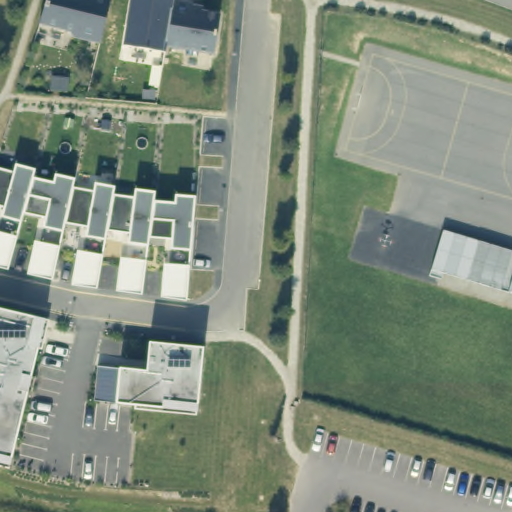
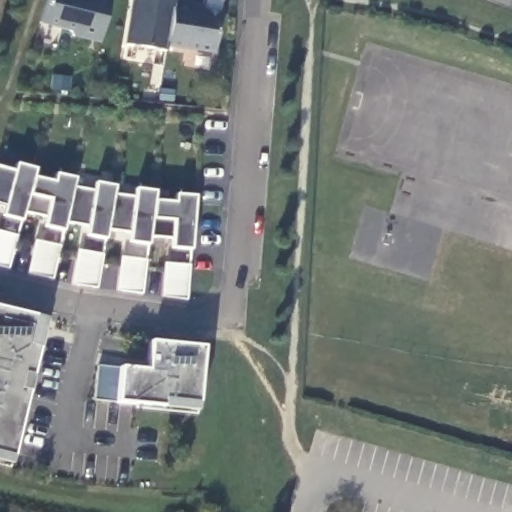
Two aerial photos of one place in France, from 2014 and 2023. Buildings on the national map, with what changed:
unchanged [(73,36),(69,30),(39,23),(47,0),(111,0),(100,42),(73,36)]
unchanged [(191,9),(220,14),(214,53),(166,45),(174,0),(192,2),(191,9)]
unchanged [(0,168),(14,172),(15,164),(36,169),(34,177),(54,182),(56,174),(74,178),(71,188),(94,192),(95,183),(114,187),(113,194),(135,198),(136,189),(155,191),(154,200),(175,202),(176,195),(194,196),(190,249),(172,248),(173,237),(149,236),(148,244),(129,242),(130,232),(107,229),(105,239),(87,236),(89,225),(65,222),(64,231),(44,226),(47,216),(24,211),(21,220),(2,216),(4,207),(0,206),(0,168)]
demolished [(507,291),(397,256),(409,218),(512,251),(512,275),(507,291)]
unchanged [(7,269),(0,268),(0,231),(16,235),(7,269)]
unchanged [(34,240),(59,246),(53,279),(28,274),(34,240)]
unchanged [(78,250),(103,254),(97,288),(71,285),(78,250)]
unchanged [(122,257),(145,260),(141,294),(117,291),(122,257)]
unchanged [(164,262),(189,265),(185,300),(161,298),(164,262)]
unchanged [(0,456),(0,308),(45,319),(45,321),(31,377),(28,391),(11,458),(0,456)]
unchanged [(146,370),(149,342),(203,347),(197,405),(164,401),(163,408),(115,403),(119,367),(146,370)]

